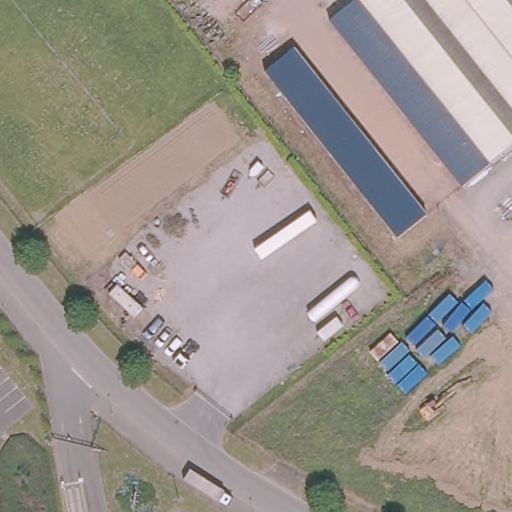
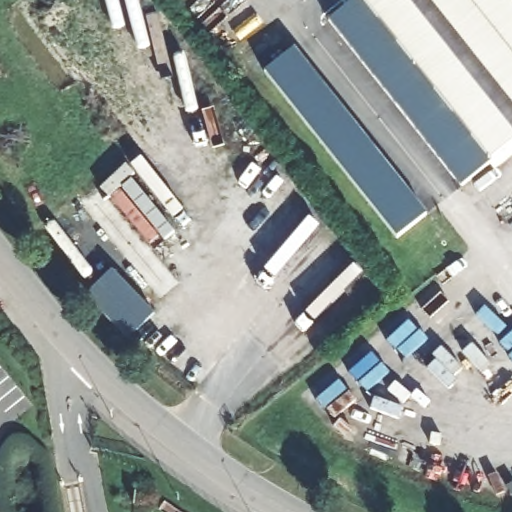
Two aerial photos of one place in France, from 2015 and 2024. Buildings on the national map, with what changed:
unchanged [(462,188),(329,21),(353,0),(362,0),(489,162),(462,188)]
unchanged [(489,162),(362,0),(512,0),(512,144),(489,162)]
unchanged [(427,215),(397,239),(265,71),(295,49),(427,215)]
new [(129,339),(86,297),(112,270),(155,314),(129,339)]

